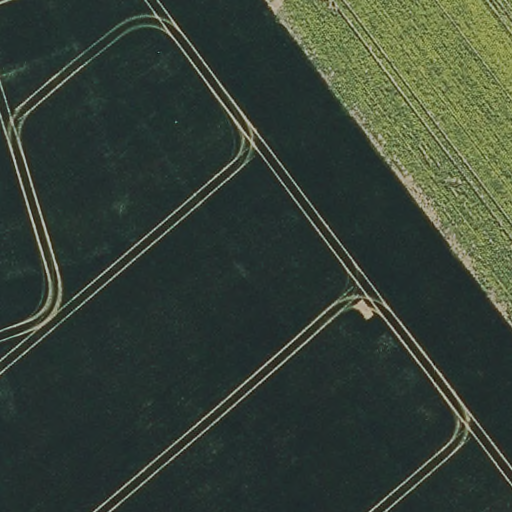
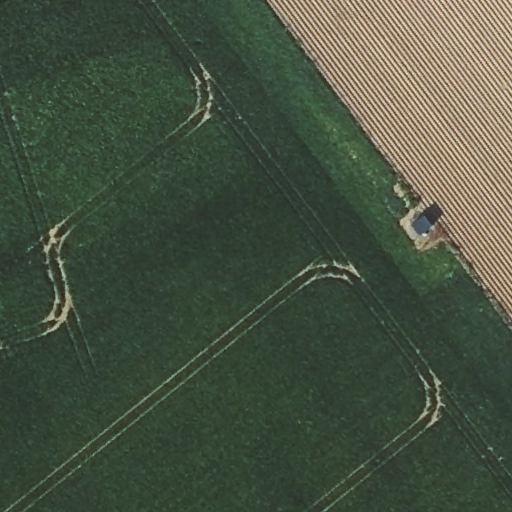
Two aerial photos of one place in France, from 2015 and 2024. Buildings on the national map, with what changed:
[]

